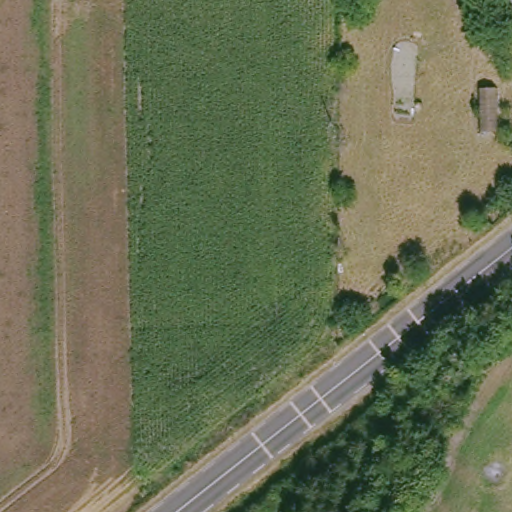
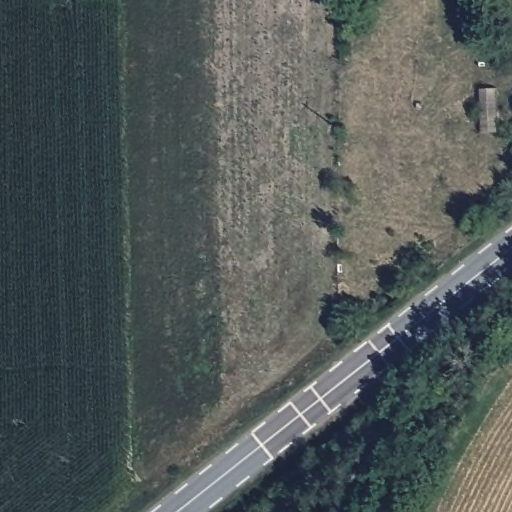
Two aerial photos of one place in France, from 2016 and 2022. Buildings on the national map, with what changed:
unchanged [(489,0),(512,0),(512,24),(490,25),(489,0)]

